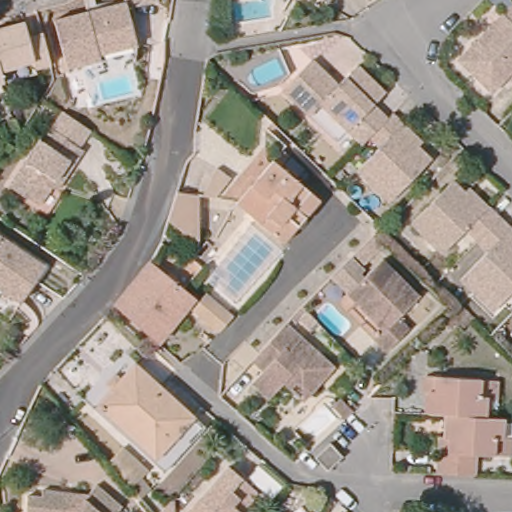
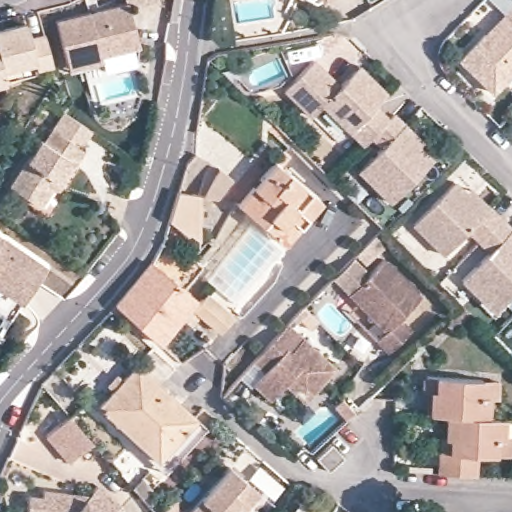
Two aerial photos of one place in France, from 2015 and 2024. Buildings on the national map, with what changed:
unchanged [(67,68),(55,20),(127,3),(138,44),(135,62),(102,70),(101,65),(68,73),(67,68)]
unchanged [(493,93),(459,60),(485,33),(503,15),(512,5),(512,73),(493,93)]
unchanged [(0,28),(24,22),(28,37),(43,33),(51,65),(36,69),(34,61),(1,70),(0,67),(0,28)]
unchanged [(364,144),(321,101),(310,112),(283,86),(314,55),(340,81),(359,61),(388,90),(375,103),(390,118),(371,137),(364,144)]
unchanged [(4,81),(0,83),(0,67),(1,70),(4,81)]
unchanged [(398,110),(408,120),(427,138),(423,143),(436,155),(395,197),(363,166),(382,148),(371,137),(390,118),(398,110)]
unchanged [(52,191),(39,210),(9,190),(40,144),(44,146),(63,116),(90,134),(79,151),(83,154),(74,168),(57,194),(52,191)]
unchanged [(284,156),(275,167),(314,200),(297,219),(290,229),(276,245),(230,204),(276,150),(284,156)]
unchanged [(461,229),(438,253),(407,222),(447,181),(460,193),(464,189),(481,206),(495,219),(474,241),(461,229)]
unchanged [(196,239),(163,218),(172,187),(196,191),(196,239)]
unchanged [(506,230),(512,236),(512,287),(488,311),(455,279),(483,251),(474,241),(495,219),(506,230)]
unchanged [(23,301),(0,286),(0,237),(46,267),(23,301)]
unchanged [(381,254),(419,291),(398,313),(409,324),(386,347),(374,335),(383,327),(346,290),(381,254)]
unchanged [(149,266),(182,294),(188,300),(154,340),(115,308),(149,266)]
unchanged [(224,322),(212,335),(187,312),(199,299),(224,322)]
unchanged [(295,304),(310,318),(304,325),(294,316),(290,320),(285,315),(295,304)]
unchanged [(279,380),(264,396),(247,381),(258,368),(247,358),(280,321),(328,364),(304,392),(298,397),(279,380)]
unchanged [(103,338),(94,349),(90,345),(99,335),(103,338)]
unchanged [(167,474),(156,464),(97,408),(100,405),(113,388),(106,381),(116,372),(122,378),(138,361),(197,417),(208,428),(167,474)]
unchanged [(433,395),(430,395),(431,377),(484,380),(496,381),(495,400),(490,400),(489,420),(449,417),(432,416),(433,395)]
unchanged [(340,397),(353,410),(345,416),(332,403),(339,396),(340,397)]
new [(92,441),(68,463),(45,437),(68,416),(92,441)]
unchanged [(489,420),(506,421),(505,438),(512,439),(512,457),(499,457),(480,456),(479,478),(442,475),(444,437),(449,438),(449,417),(488,420),(489,420)]
unchanged [(343,453),(331,465),(326,466),(316,455),(331,442),(343,453)]
unchanged [(257,486),(235,512),(183,512),(227,461),(257,486)]
unchanged [(39,497),(52,498),(54,492),(77,494),(98,499),(107,488),(129,509),(126,512),(36,512),(39,497)]
unchanged [(161,512),(169,502),(169,512),(161,512)]

